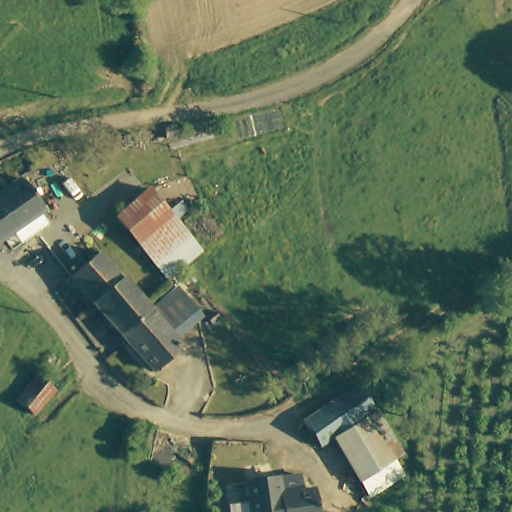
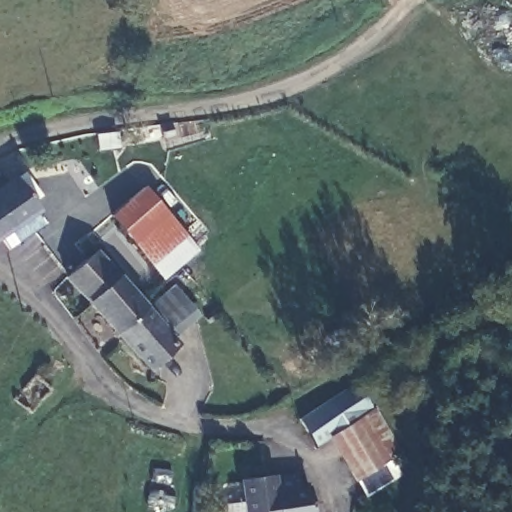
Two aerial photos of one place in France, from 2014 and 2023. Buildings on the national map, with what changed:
unchanged [(165,138),(150,142),(146,126),(162,124),(165,138)]
unchanged [(110,139),(111,147),(90,151),(90,142),(110,139)]
unchanged [(16,240),(8,227),(0,232),(0,187),(15,177),(37,208),(35,209),(43,222),(16,240)]
unchanged [(112,215),(143,188),(154,200),(168,217),(155,229),(136,245),(112,215)]
unchanged [(198,252),(165,280),(136,245),(155,229),(168,217),(198,252)]
unchanged [(64,276),(93,251),(117,277),(101,291),(89,303),(64,276)]
unchanged [(144,307),(148,311),(171,336),(177,342),(149,368),(89,303),(101,291),(117,277),(144,307)]
unchanged [(173,287),(196,312),(171,336),(148,311),(173,287)]
unchanged [(11,396),(30,373),(47,387),(28,411),(11,396)]
unchanged [(315,443),(300,419),(354,384),(369,408),(324,437),(315,443)]
unchanged [(397,451),(352,480),(324,437),(369,408),(397,451)]
unchanged [(311,484),(313,512),(249,512),(245,476),(298,471),(300,485),(311,484)]

